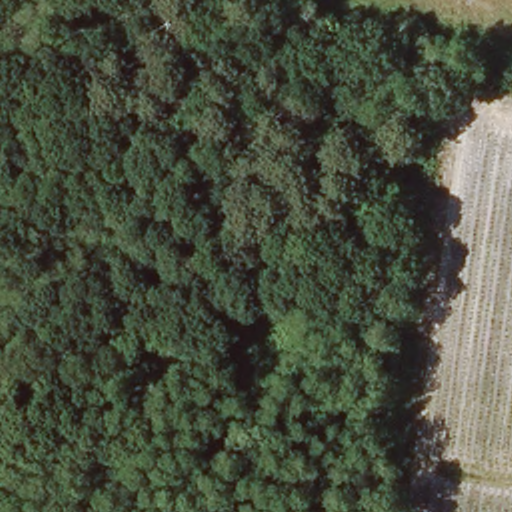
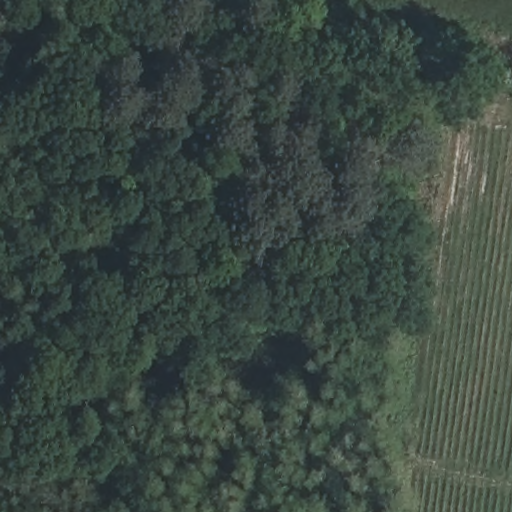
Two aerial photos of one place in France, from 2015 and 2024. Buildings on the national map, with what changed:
[]

